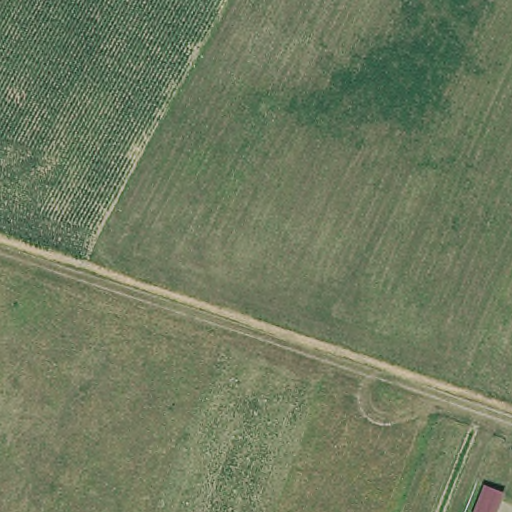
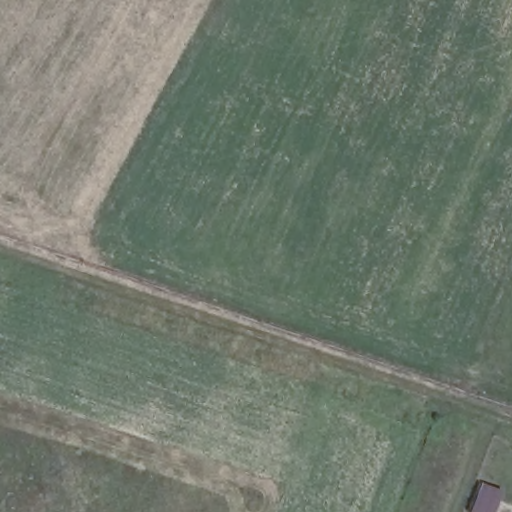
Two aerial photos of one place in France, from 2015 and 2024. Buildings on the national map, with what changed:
unchanged [(496,512),(475,512),(483,486),(506,492),(496,512)]

